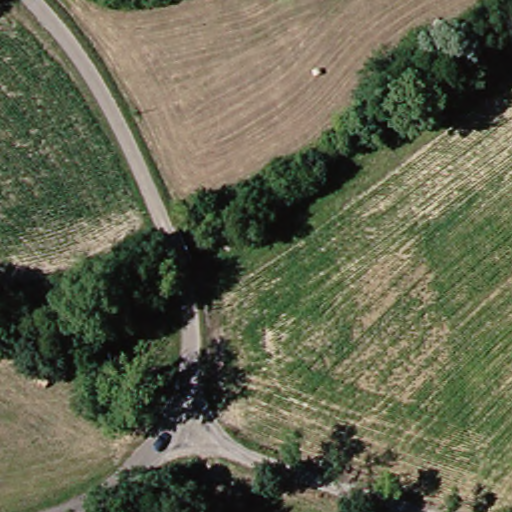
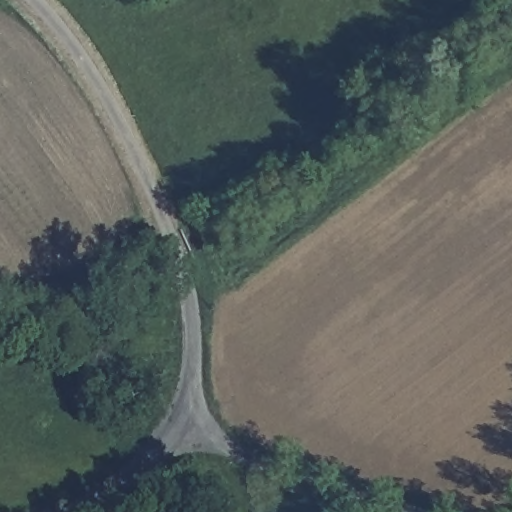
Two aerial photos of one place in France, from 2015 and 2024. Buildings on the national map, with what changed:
[]

